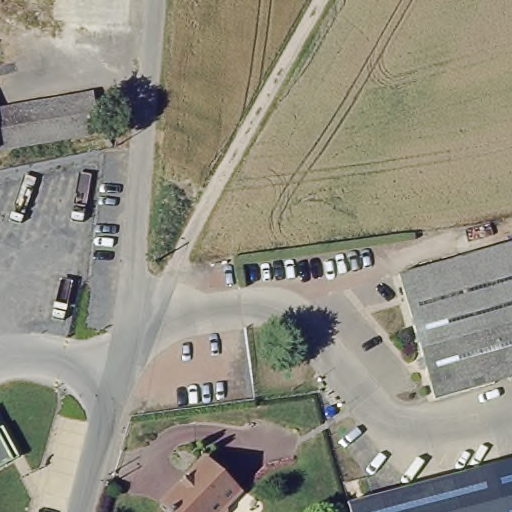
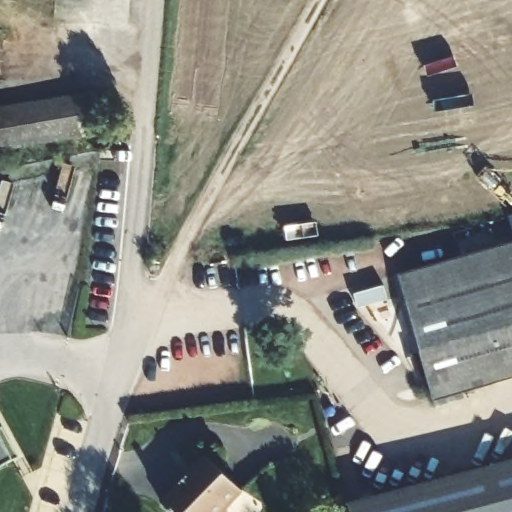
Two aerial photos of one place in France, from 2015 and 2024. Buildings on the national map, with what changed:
unchanged [(95,95),(100,135),(0,151),(0,111),(95,95)]
unchanged [(512,377),(437,399),(400,274),(512,242),(512,377)]
unchanged [(2,426),(16,455),(0,464),(0,427),(2,426)]
unchanged [(512,456),(512,512),(354,512),(350,499),(512,456)]
unchanged [(244,492),(230,506),(229,512),(173,512),(164,502),(210,457),(244,492)]

